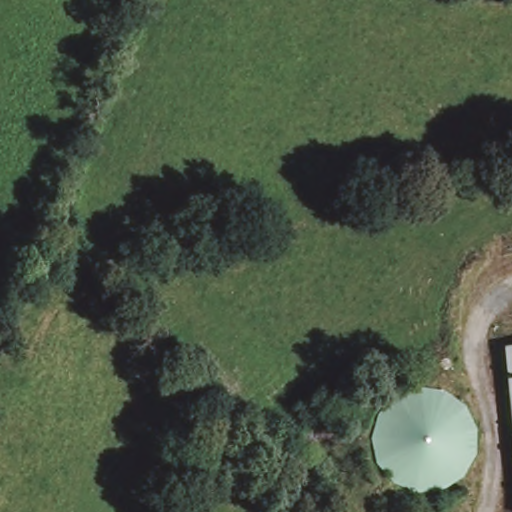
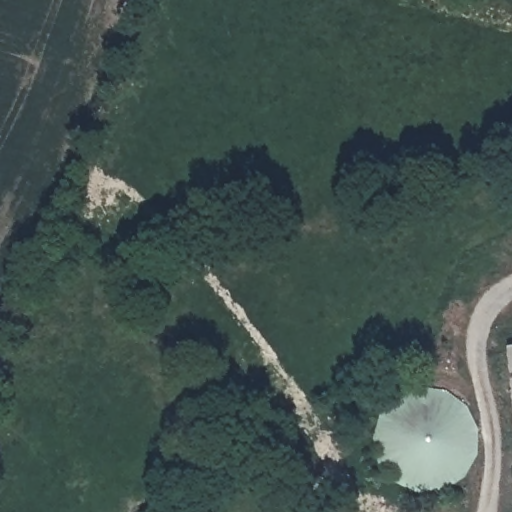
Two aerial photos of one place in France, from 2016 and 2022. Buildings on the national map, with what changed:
unchanged [(509,443),(502,349),(512,348),(512,442),(509,443)]
unchanged [(509,443),(512,442),(512,469),(509,443)]

